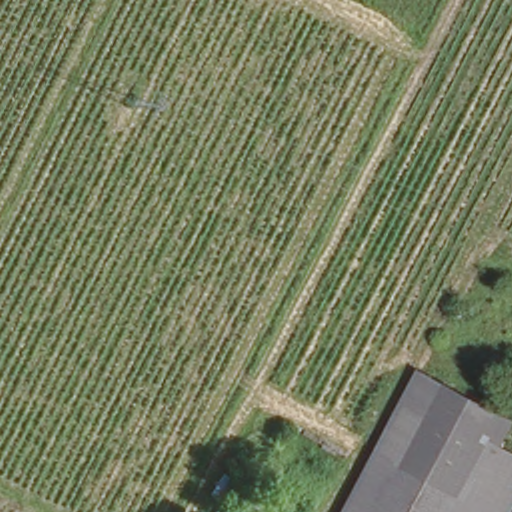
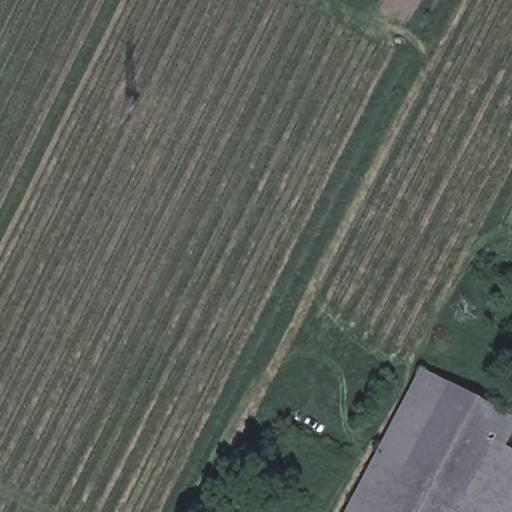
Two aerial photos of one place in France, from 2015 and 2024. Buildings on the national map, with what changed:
unchanged [(420,367),(512,416),(512,431),(505,444),(512,448),(512,512),(342,512),(420,367)]

